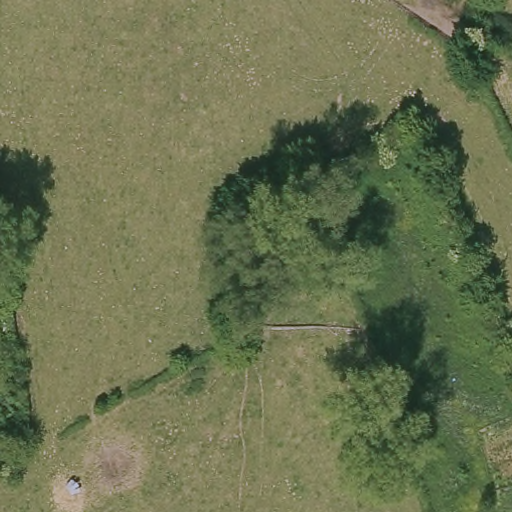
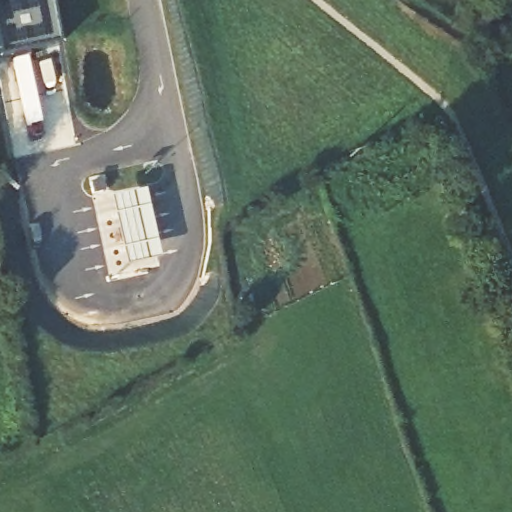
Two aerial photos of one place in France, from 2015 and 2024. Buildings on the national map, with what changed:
new [(61,45),(0,60),(0,0),(51,0),(61,45)]

